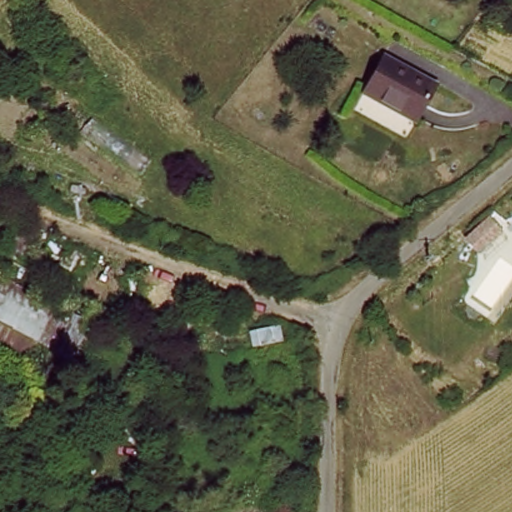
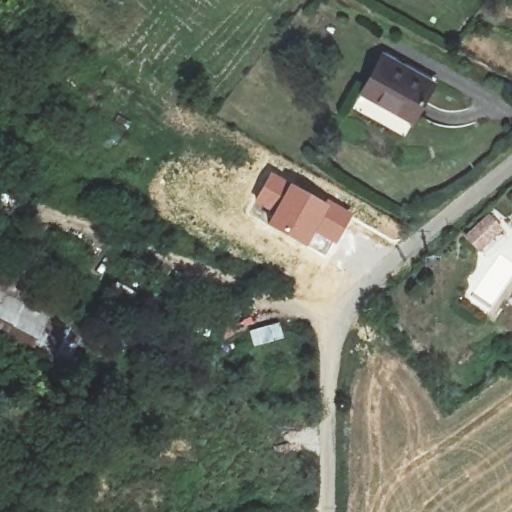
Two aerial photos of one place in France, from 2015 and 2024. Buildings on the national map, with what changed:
unchanged [(361,88),(390,53),(433,90),(406,124),(361,88)]
new [(270,172),(325,204),(327,199),(353,215),(333,247),(312,235),(305,248),(264,224),(270,214),(253,204),(270,172)]
unchanged [(23,382),(0,369),(0,271),(93,319),(74,374),(36,362),(23,382)]
new [(279,322),(284,339),(252,348),(248,331),(279,322)]
unchanged [(274,512),(265,512),(265,509),(274,512)]

